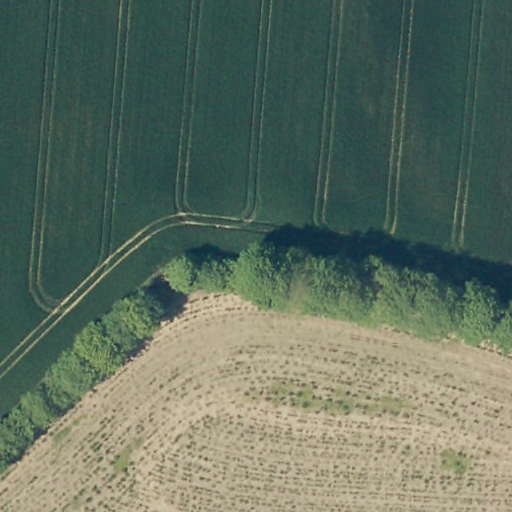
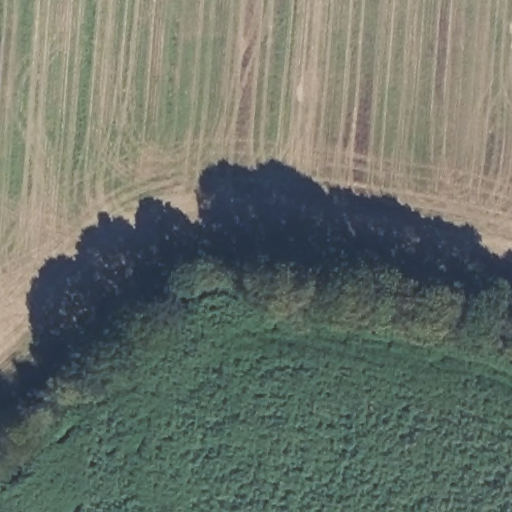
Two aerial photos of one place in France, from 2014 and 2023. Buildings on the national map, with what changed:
[]

